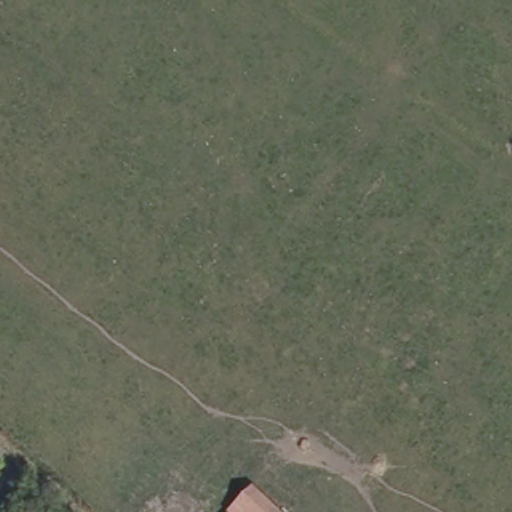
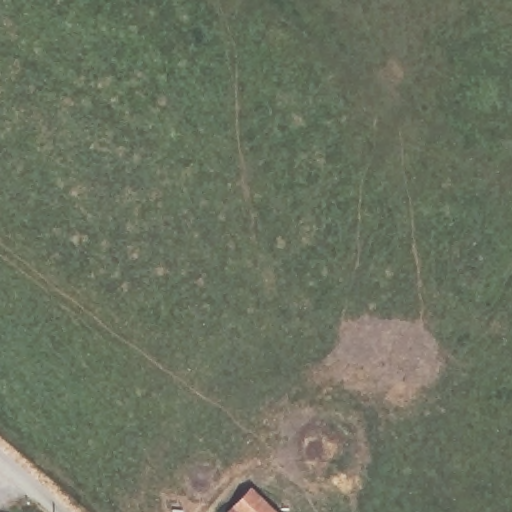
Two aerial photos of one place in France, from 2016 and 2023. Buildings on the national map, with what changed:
unchanged [(241,491),(277,511),(277,512),(226,512),(241,491)]

